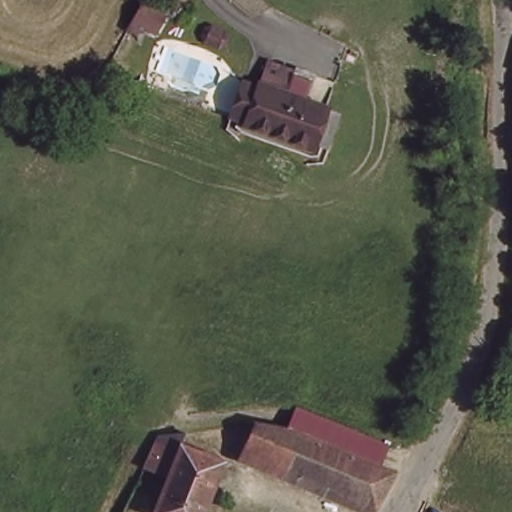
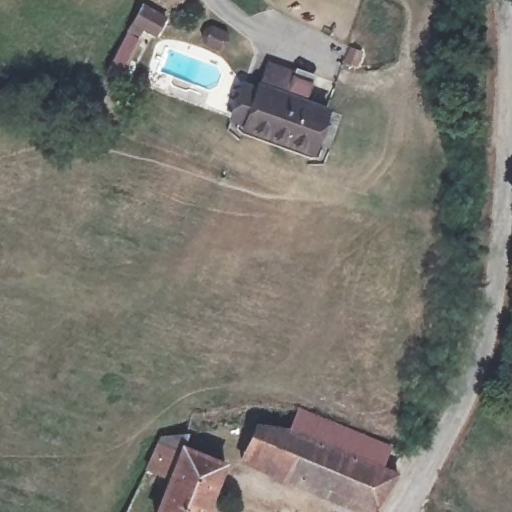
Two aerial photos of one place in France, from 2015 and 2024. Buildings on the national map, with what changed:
unchanged [(243,114),(279,130),(313,134),(314,135),(321,138),(314,154),(303,155),(236,125),(232,117),(236,110),(229,105),(245,71),(258,77),(243,114)]
unchanged [(313,134),(279,130),(243,114),(258,77),(259,73),(327,103),(314,135),(313,134)]
unchanged [(386,502),(379,512),(358,512),(241,469),(259,415),(307,432),(294,471),(386,502)]
unchanged [(294,471),(307,432),(405,465),(386,502),(294,471)]
unchanged [(168,477),(136,463),(151,433),(180,446),(168,477)]
unchanged [(226,467),(207,512),(154,512),(168,477),(180,446),(205,458),(226,467)]

